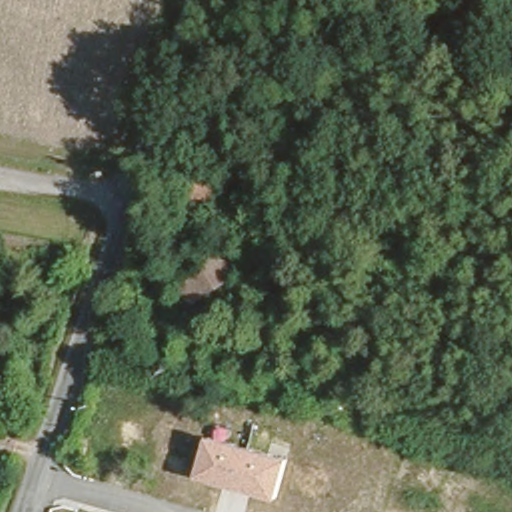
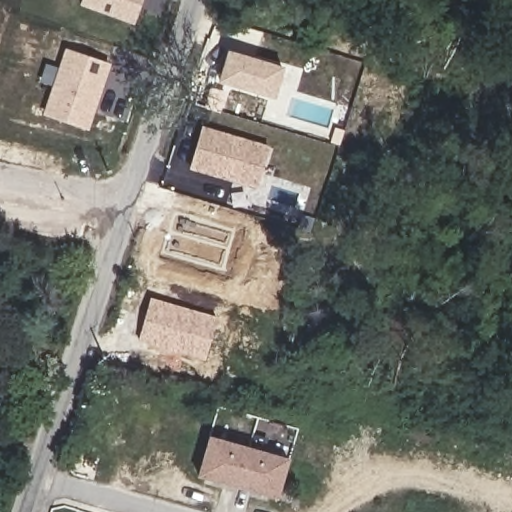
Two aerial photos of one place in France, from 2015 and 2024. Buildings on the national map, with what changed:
new [(136,24),(81,4),(82,0),(144,0),(136,24)]
new [(111,64),(89,130),(44,115),(66,48),(111,64)]
new [(217,83),(227,50),(284,67),(276,100),(217,83)]
new [(188,169),(202,124),(271,146),(257,190),(188,169)]
new [(174,214),(236,230),(224,270),(163,253),(174,214)]
demolished [(195,295),(175,260),(197,247),(200,250),(212,243),(216,250),(233,241),(246,265),(195,295)]
new [(218,316),(205,360),(138,340),(150,296),(218,316)]
unchanged [(277,500),(195,479),(209,436),(291,458),(277,500)]

